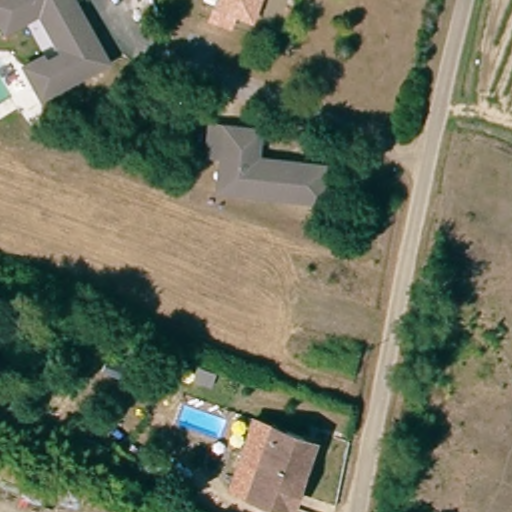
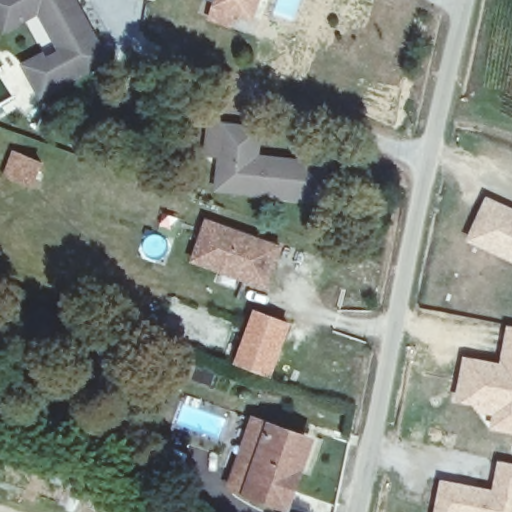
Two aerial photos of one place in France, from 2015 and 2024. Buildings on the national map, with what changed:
unchanged [(67,61),(40,14),(6,33),(0,22),(0,0),(75,0),(81,12),(110,63),(53,94),(44,100),(26,67),(45,57),(52,70),(67,61)]
unchanged [(215,6),(201,0),(218,0),(215,6)]
unchanged [(218,0),(259,0),(252,20),(215,6),(218,0)]
unchanged [(204,152),(207,121),(222,122),(258,127),(255,155),(264,156),(324,162),(320,199),(233,189),(215,187),(219,153),(204,152)]
new [(512,261),(466,241),(486,197),(512,208),(512,261)]
new [(283,247),(268,291),(190,262),(206,217),(283,247)]
new [(253,307),(292,322),(272,378),(233,364),(253,307)]
new [(506,325),(512,326),(512,433),(490,430),(493,416),(479,413),(475,406),(455,403),(463,356),(500,362),(506,325)]
new [(226,487),(253,415),(317,437),(290,510),(226,487)]
demolished [(288,507),(281,505),(246,493),(268,428),(302,441),(297,457),(293,468),(301,471),(288,507)]
new [(498,460),(512,463),(512,512),(434,512),(440,480),(491,490),(498,460)]

